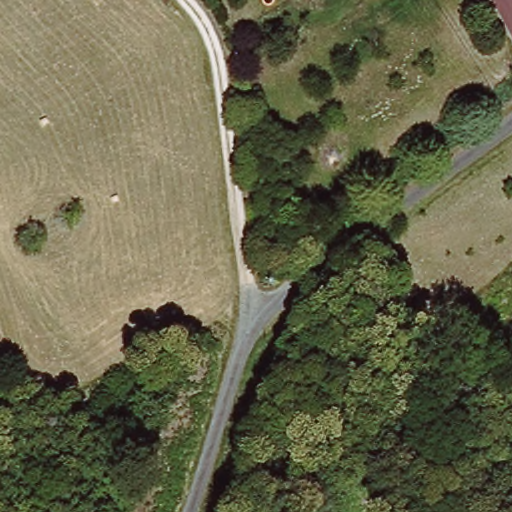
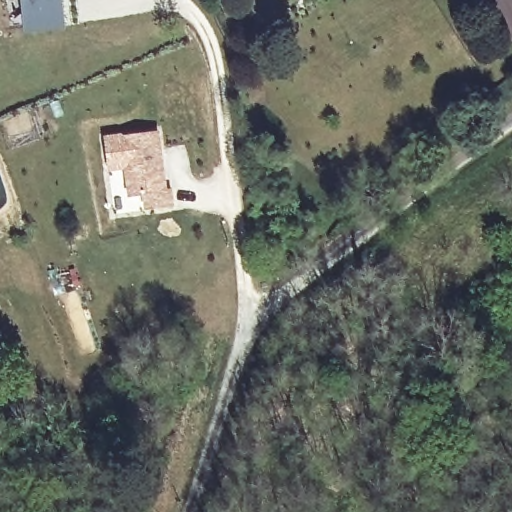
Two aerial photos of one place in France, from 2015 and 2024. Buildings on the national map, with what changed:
new [(68,28),(29,33),(25,0),(65,0),(68,28)]
new [(166,153),(167,164),(171,190),(178,189),(179,207),(152,211),(150,196),(135,197),(131,167),(113,170),(108,138),(163,130),(166,153)]

